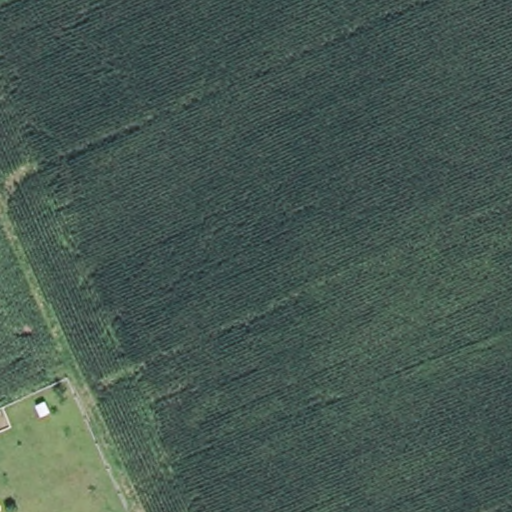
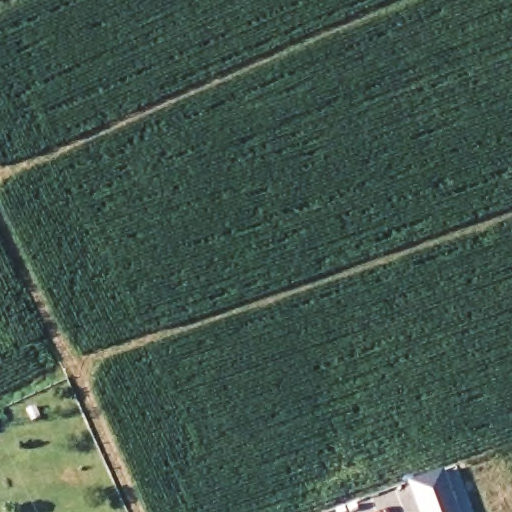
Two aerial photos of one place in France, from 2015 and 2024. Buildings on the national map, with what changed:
new [(455,465),(472,512),(462,512),(445,469),(455,465)]
new [(408,482),(445,469),(462,512),(418,512),(408,482)]

